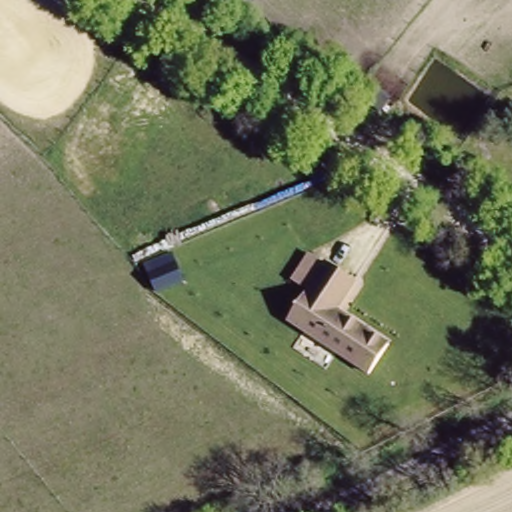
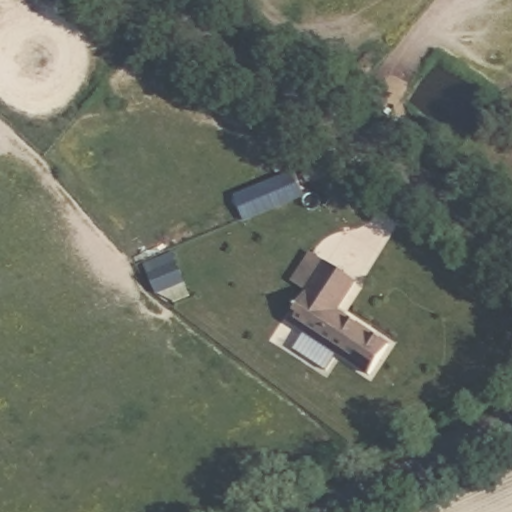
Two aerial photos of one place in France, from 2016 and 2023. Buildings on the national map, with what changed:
unchanged [(357,282),(338,309),(391,344),(370,376),(284,321),(323,261),(357,282)]

